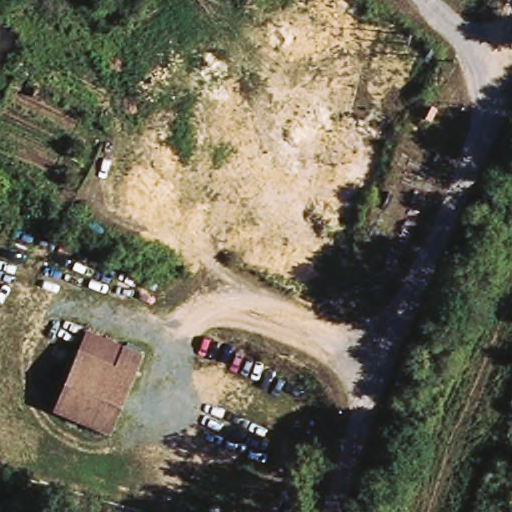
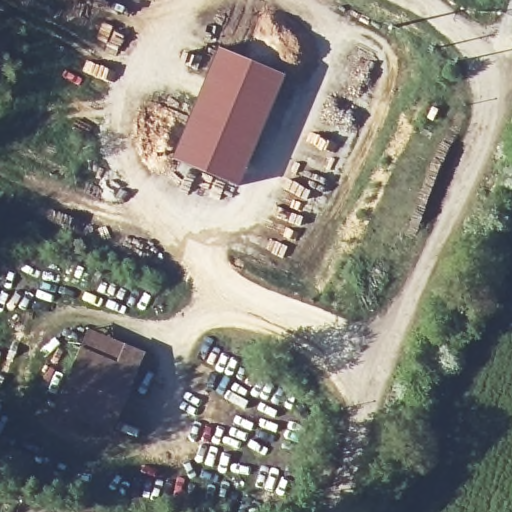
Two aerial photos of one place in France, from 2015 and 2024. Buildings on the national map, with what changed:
new [(286,75),(239,187),(171,159),(218,46),(286,75)]
unchanged [(134,346),(111,426),(54,410),(73,349),(106,358),(113,340),(134,346)]

